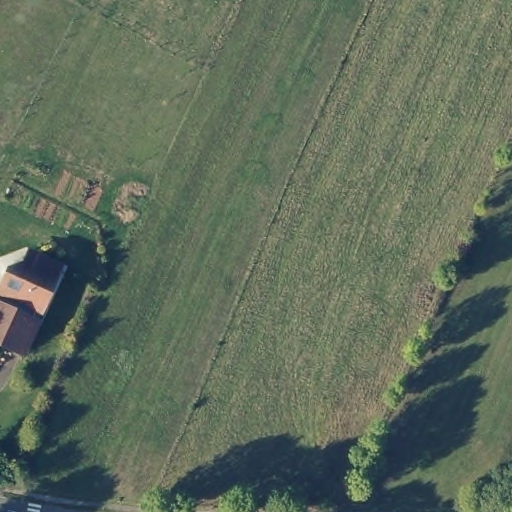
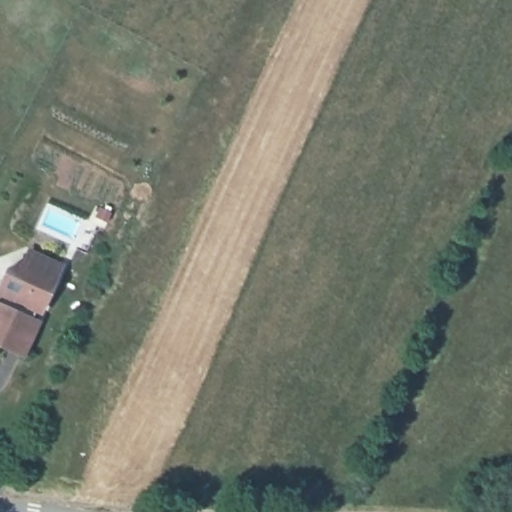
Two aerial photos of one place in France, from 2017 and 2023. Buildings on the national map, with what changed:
unchanged [(23,260),(27,248),(62,264),(24,357),(0,346),(0,276),(4,267),(23,260)]

